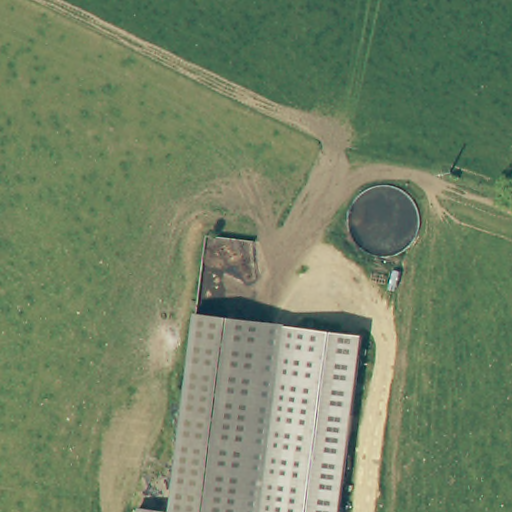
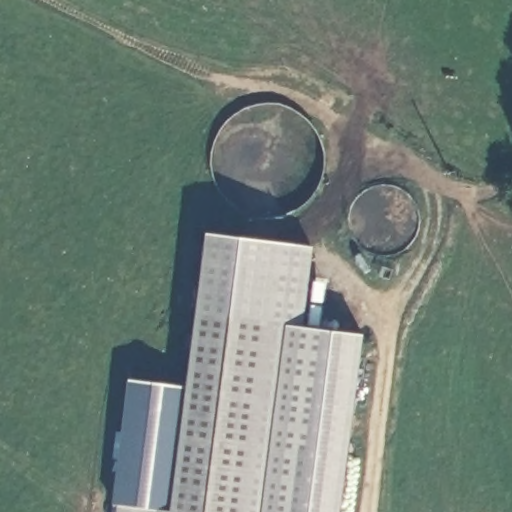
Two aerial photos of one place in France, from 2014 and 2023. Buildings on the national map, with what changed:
new [(262,319),(191,310),(202,232),(314,245),(304,324),(262,319)]
unchanged [(168,512),(168,510),(166,510),(191,310),(262,319),(238,512),(168,512)]
unchanged [(362,332),(339,512),(238,512),(262,319),(362,332)]
new [(135,506),(135,512),(117,512),(118,504),(112,503),(128,378),(182,386),(166,510),(135,506)]
unchanged [(166,510),(168,510),(168,512),(135,512),(135,506),(166,510)]

